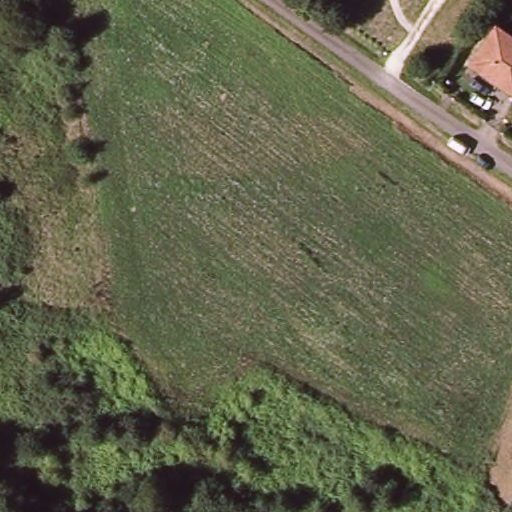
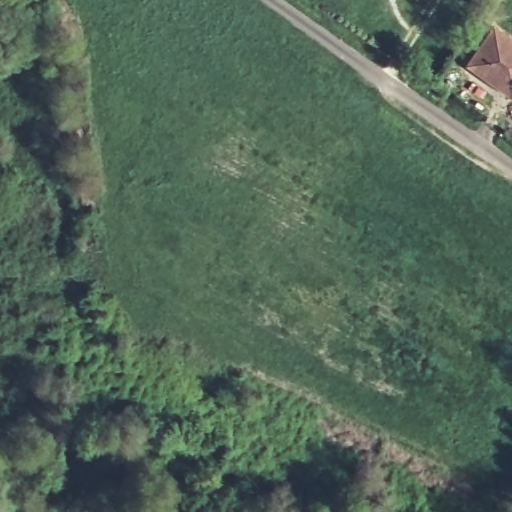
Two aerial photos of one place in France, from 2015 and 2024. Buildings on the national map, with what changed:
unchanged [(512,39),(512,94),(467,62),(494,26),(512,39)]

